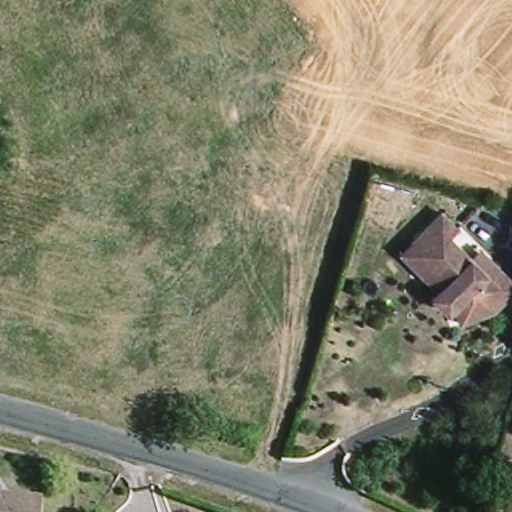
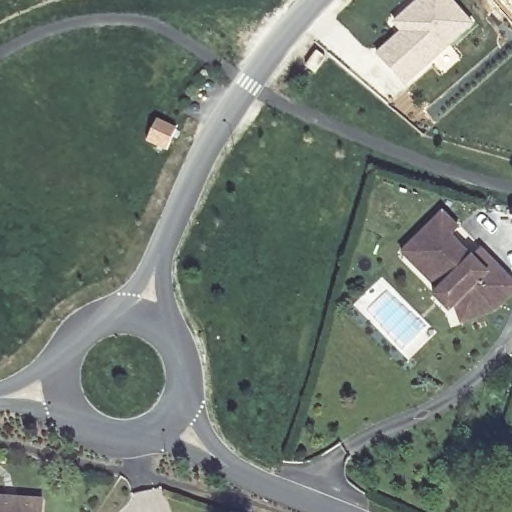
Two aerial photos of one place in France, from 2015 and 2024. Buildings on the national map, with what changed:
new [(416,4),(420,0),(452,0),(472,22),(405,84),(378,54),(404,30),(395,21),(416,4)]
new [(512,0),(512,3),(510,0),(512,0)]
unchanged [(491,279),(501,272),(512,284),(512,305),(497,318),(462,328),(460,313),(422,269),(434,259),(420,244),(452,215),(465,232),(457,239),(491,279)]
unchanged [(434,259),(422,269),(460,313),(462,328),(451,331),(449,317),(435,300),(439,296),(405,257),(420,244),(434,259)]
unchanged [(0,506),(16,507),(16,502),(45,504),(44,512),(0,512),(0,506)]

